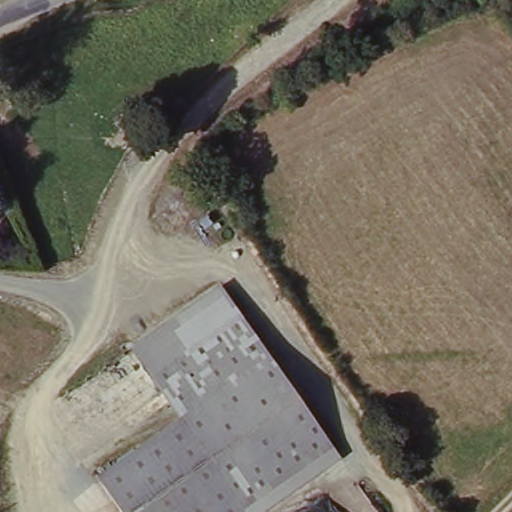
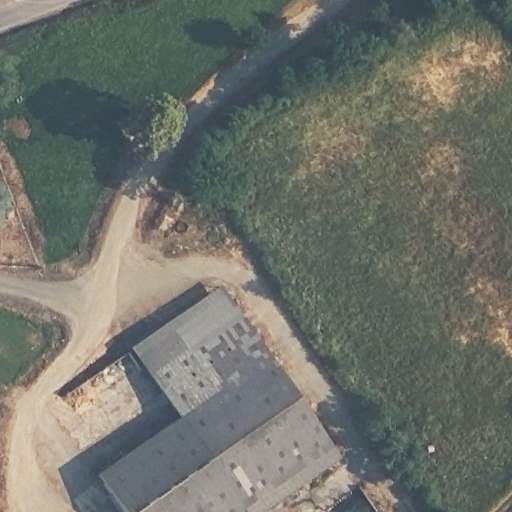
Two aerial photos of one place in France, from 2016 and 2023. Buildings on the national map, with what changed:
unchanged [(137,110),(158,155),(140,164),(118,119),(137,110)]
unchanged [(131,348),(219,289),(227,300),(140,360),(131,348)]
unchanged [(93,478),(177,414),(140,360),(227,300),(263,351),(292,393),(311,420),(224,484),(243,512),(117,512),(93,478)]
unchanged [(330,449),(244,512),(243,512),(224,484),(311,420),(330,449)]

